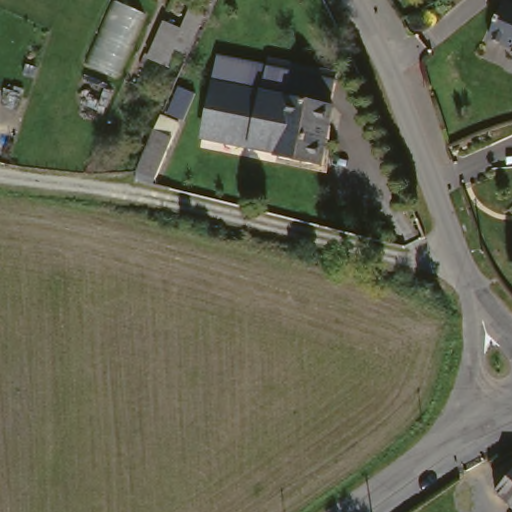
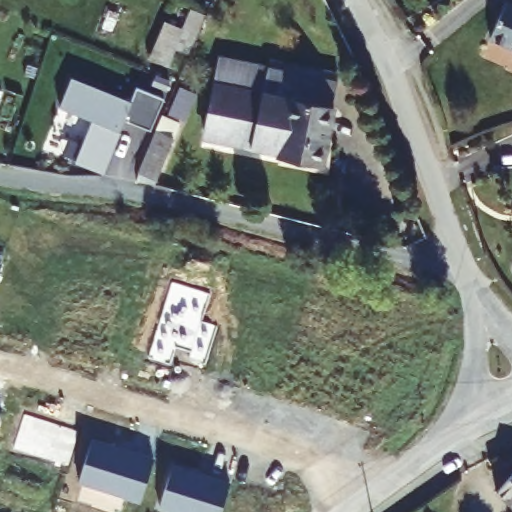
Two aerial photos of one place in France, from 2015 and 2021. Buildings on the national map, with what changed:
unchanged [(512,41),(494,32),(508,0),(512,0),(512,41)]
unchanged [(185,23),(170,67),(146,61),(160,15),(185,23)]
unchanged [(296,66),(336,74),(335,81),(336,81),(331,109),(333,109),(323,165),(277,156),(277,154),(250,149),(251,143),(203,134),(218,59),(294,73),(296,66)]
new [(92,120),(60,107),(71,78),(130,102),(137,87),(163,98),(151,128),(124,118),(103,173),(75,162),(92,120)]
unchanged [(176,83),(200,94),(162,179),(137,170),(176,83)]
unchanged [(5,98),(0,108),(0,96),(5,98)]
new [(1,266),(0,269),(0,266),(1,266)]
new [(173,285),(211,297),(202,324),(218,329),(206,368),(190,362),(191,356),(176,351),(171,368),(149,361),(173,285)]
new [(2,410),(0,415),(0,410),(2,410)]
new [(25,417),(79,434),(68,468),(14,451),(25,417)]
new [(92,442),(154,462),(141,503),(79,484),(92,442)]
unchanged [(512,461),(512,498),(494,483),(512,461)]
new [(229,485),(219,512),(168,512),(160,509),(173,468),(229,485)]
unchanged [(512,505),(512,512),(511,512),(508,509),(512,505)]

